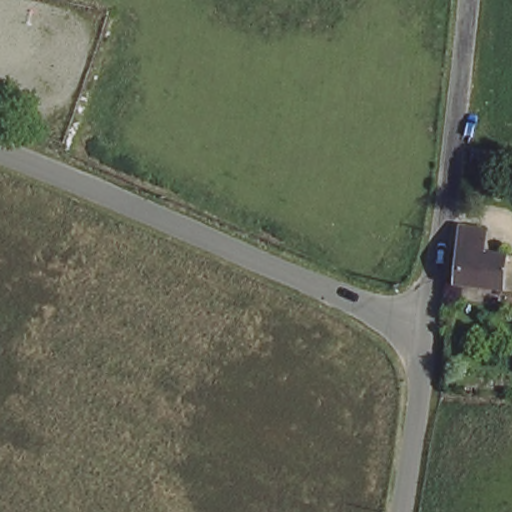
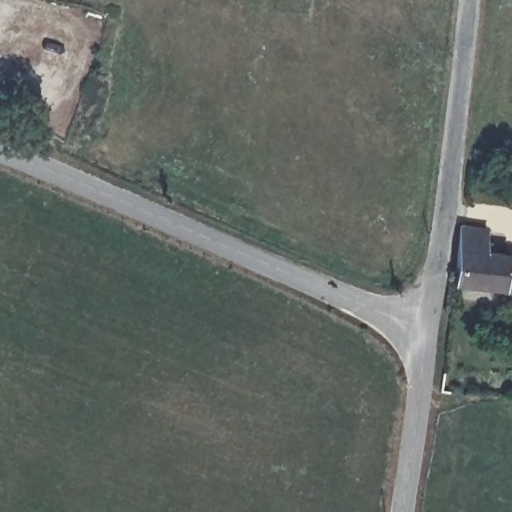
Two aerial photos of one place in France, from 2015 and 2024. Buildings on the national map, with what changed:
unchanged [(506,283),(505,287),(460,282),(466,233),(483,235),(481,252),(510,256),(512,256),(512,284),(506,283)]

